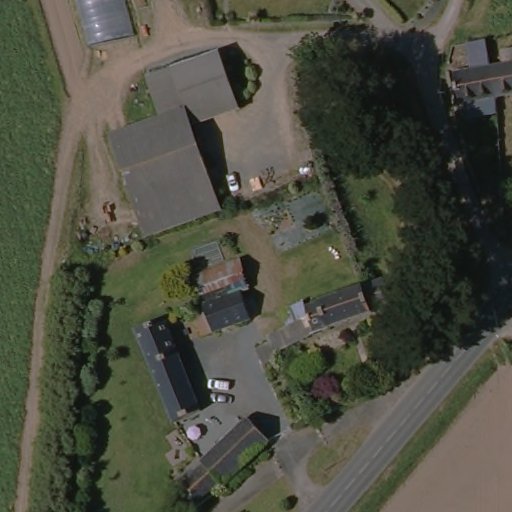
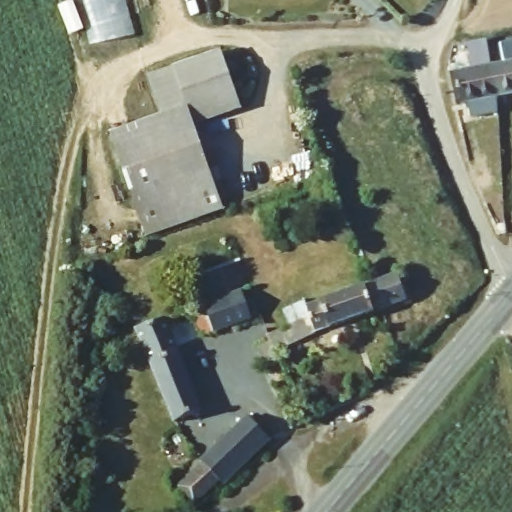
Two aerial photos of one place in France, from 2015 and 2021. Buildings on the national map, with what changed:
unchanged [(129,43),(90,54),(74,0),(117,0),(129,43)]
unchanged [(464,99),(458,70),(474,66),(469,40),(492,36),(495,62),(499,92),(464,99)]
unchanged [(512,59),(512,90),(499,92),(495,62),(512,59)]
unchanged [(150,81),(224,61),(232,87),(241,121),(191,132),(188,120),(161,127),(154,101),(150,81)]
unchanged [(112,140),(161,127),(188,120),(191,132),(212,220),(134,239),(112,140)]
unchanged [(248,300),(239,302),(248,328),(200,343),(193,321),(204,317),(203,310),(196,311),(189,289),(187,283),(237,268),(239,267),(248,300)]
unchanged [(321,336),(259,371),(247,353),(278,332),(275,320),(369,287),(379,315),(321,336)]
unchanged [(187,418),(159,424),(137,332),(167,324),(187,418)]
unchanged [(198,470),(194,466),(244,423),(268,448),(220,494),(216,489),(202,503),(192,512),(173,492),(198,470)]

